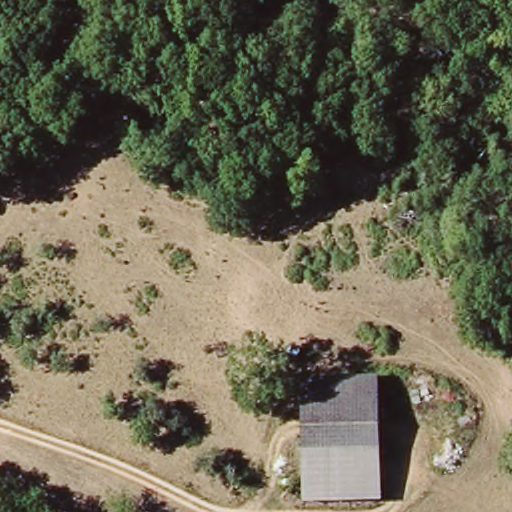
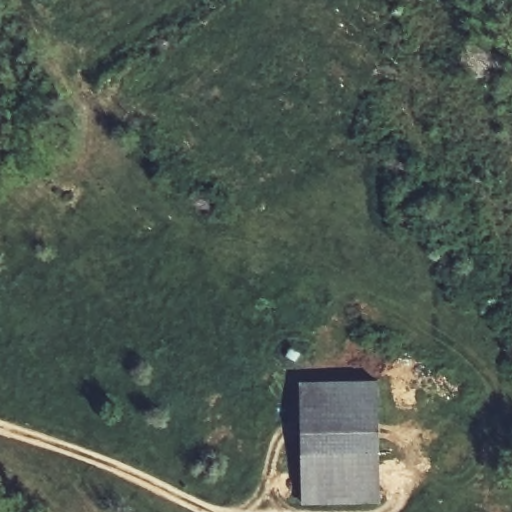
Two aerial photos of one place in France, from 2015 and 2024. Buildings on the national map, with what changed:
unchanged [(310,385),(376,387),(374,447),(307,445),(310,385)]
unchanged [(372,499),(305,496),(307,445),(374,447),(372,499)]

